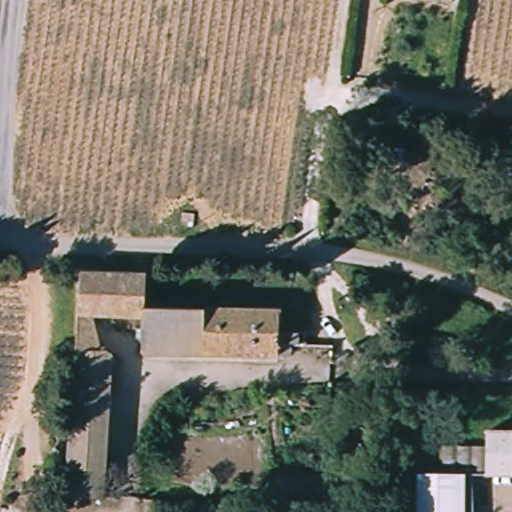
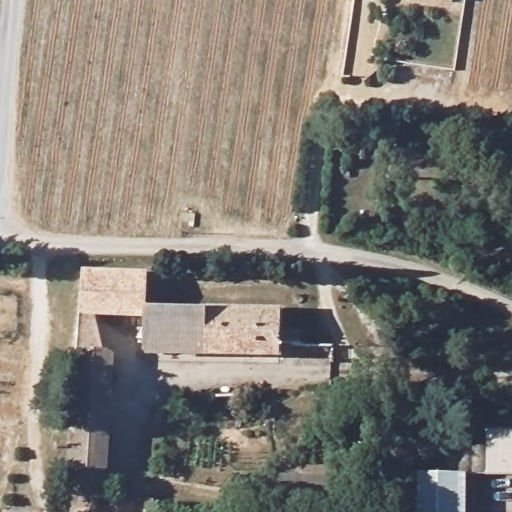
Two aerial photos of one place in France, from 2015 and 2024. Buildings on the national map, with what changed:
unchanged [(131,275),(131,303),(128,323),(115,323),(99,321),(95,351),(104,351),(100,471),(109,472),(110,487),(98,487),(97,499),(61,494),(70,271),(131,275)]
unchanged [(128,323),(131,303),(271,315),(270,372),(141,359),(114,337),(115,323),(128,323)]
unchanged [(493,426),(512,427),(512,474),(491,474),(492,449),(493,426)]
unchanged [(463,473),(447,472),(447,445),(492,449),(491,474),(463,473)]
unchanged [(463,473),(460,512),(423,512),(426,471),(447,472),(463,473)]
unchanged [(279,483),(331,486),(331,499),(279,496),(279,483)]

